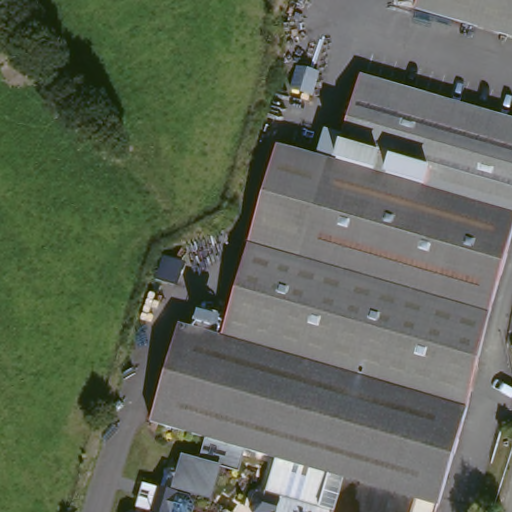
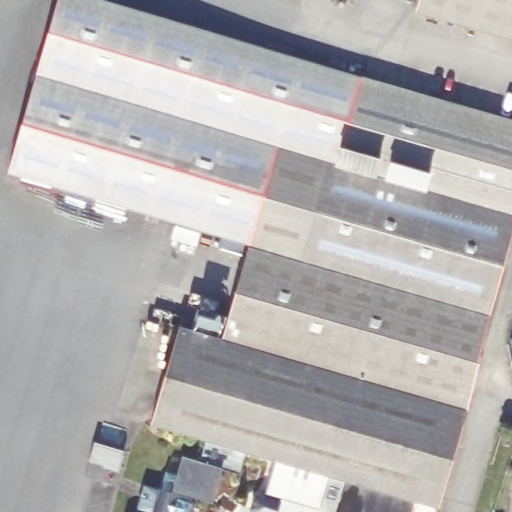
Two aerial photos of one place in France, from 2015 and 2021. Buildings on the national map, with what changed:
new [(59,0),(94,0),(359,75),(339,144),(340,144),(335,161),(275,142),(245,241),(8,172),(59,0)]
unchanged [(404,0),(512,0),(512,41),(401,7),(404,0)]
unchanged [(162,422),(145,417),(174,321),(217,334),(240,259),(275,142),(335,161),(340,144),(339,144),(359,75),(512,121),(512,228),(499,272),(497,277),(481,330),(429,502),(427,502),(424,512),(250,512),(250,510),(243,508),(240,502),(244,490),(250,486),(327,509),(337,475),(190,431),(186,443),(158,435),(162,422)]
unchanged [(134,485),(194,502),(191,512),(126,512),(134,485)]

